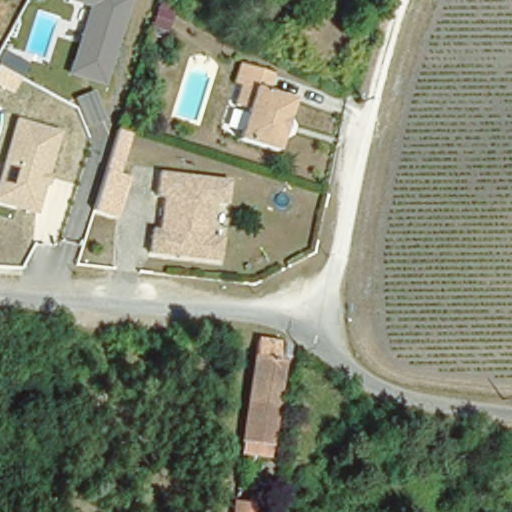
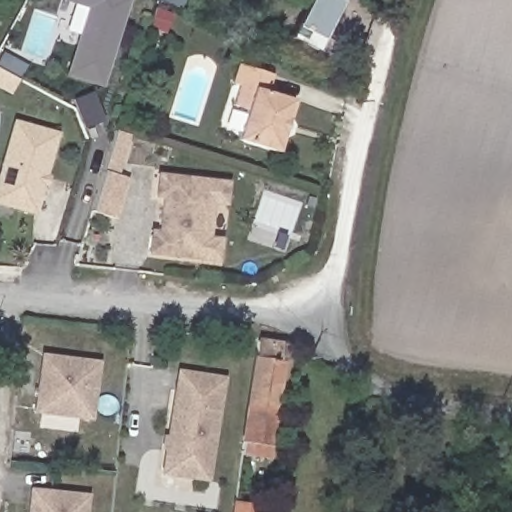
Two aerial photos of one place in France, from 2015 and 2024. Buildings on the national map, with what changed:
unchanged [(106,88),(66,77),(86,10),(59,1),(59,0),(133,0),(106,88)]
new [(15,78),(7,92),(0,88),(0,51),(23,63),(15,78)]
unchanged [(246,105),(233,100),(241,80),(234,77),(241,59),(274,72),(268,87),(294,97),(275,147),(235,133),(246,105)]
unchanged [(0,207),(0,162),(13,120),(61,132),(37,216),(0,207)]
unchanged [(131,135),(120,176),(127,179),(117,218),(94,213),(104,172),(117,131),(131,135)]
unchanged [(161,190),(154,190),(157,167),(227,177),(224,198),(212,197),(208,232),(219,233),(216,256),(146,247),(149,227),(156,228),(156,224),(161,190)]
unchanged [(257,335),(283,340),(281,358),(284,359),(271,442),(253,440),(252,451),(242,450),(244,436),(242,436),(257,335)]
new [(32,413),(40,353),(100,360),(93,419),(32,413)]
new [(160,449),(162,434),(166,435),(177,368),(225,375),(209,482),(160,475),(164,450),(160,449)]
new [(26,512),(29,488),(89,493),(86,512),(26,512)]
unchanged [(273,501),(271,512),(230,512),(233,497),(273,501)]

